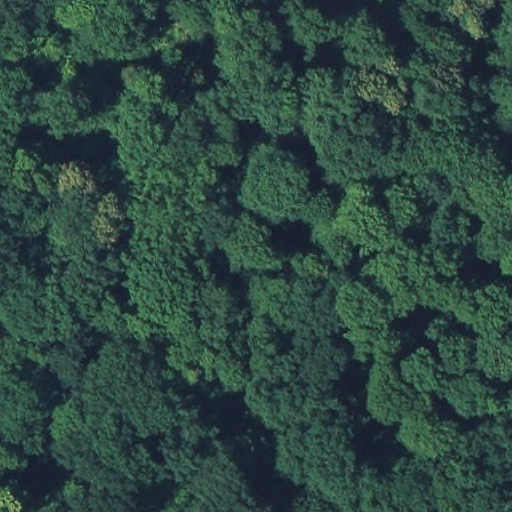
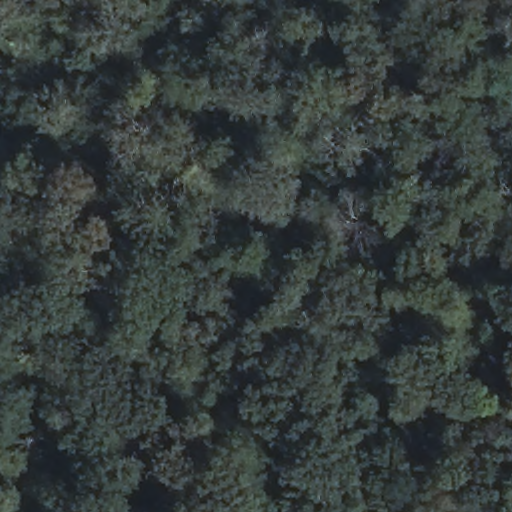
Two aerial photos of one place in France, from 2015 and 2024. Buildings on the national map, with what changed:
[]

